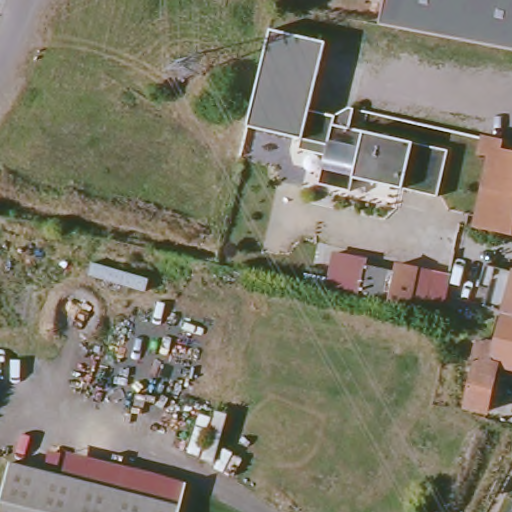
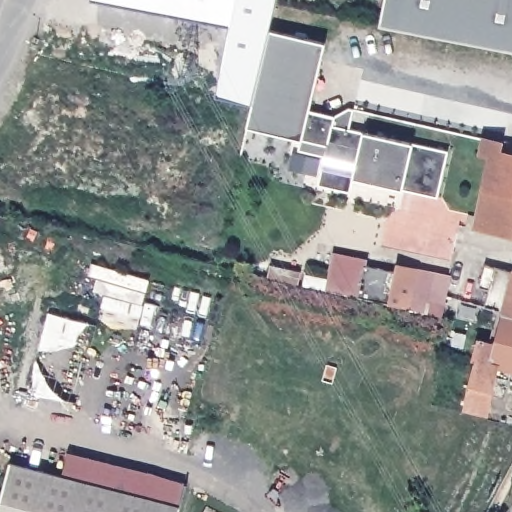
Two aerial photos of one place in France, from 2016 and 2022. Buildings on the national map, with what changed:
new [(267,33),(252,108),(215,99),(227,27),(90,0),(274,0),(267,33)]
unchanged [(512,51),(505,49),(380,25),(384,0),(512,0),(512,51)]
unchanged [(327,42),(312,111),(337,117),(351,108),(356,109),(352,129),(415,145),(449,152),(440,197),(354,180),(350,194),(320,187),(325,155),(300,149),(302,140),(250,127),(272,30),(327,42)]
unchanged [(487,153),(476,151),(477,143),(478,134),(500,138),(498,147),(512,150),(512,173),(485,167),(487,153)]
unchanged [(485,167),(512,173),(512,239),(472,228),(485,167)]
unchanged [(368,267),(396,272),(398,265),(420,270),(452,278),(444,318),(412,311),(389,305),(359,299),(328,293),(302,287),(305,274),(329,279),(333,253),(369,260),(368,267)]
unchanged [(504,310),(485,306),(490,288),(475,284),(480,265),(512,275),(512,316),(503,313),(504,310)]
unchanged [(477,358),(472,357),(477,337),(496,340),(503,313),(512,316),(512,368),(500,365),(477,358)]
unchanged [(488,409),(465,403),(477,358),(500,365),(495,382),(488,409)]
unchanged [(7,469),(8,463),(178,509),(178,512),(0,512),(0,494),(7,469)]

